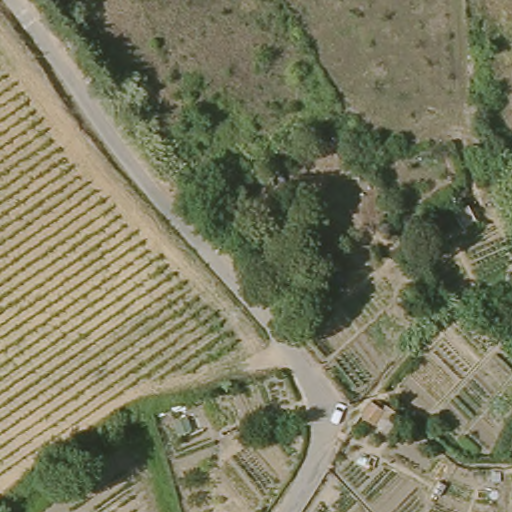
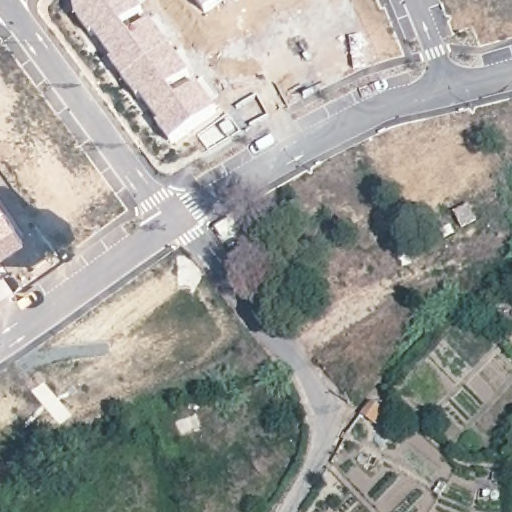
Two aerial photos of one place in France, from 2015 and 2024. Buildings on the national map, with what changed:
new [(137,3),(142,10),(123,26),(130,37),(149,21),(157,16),(172,35),(163,38),(173,51),(180,47),(197,68),(189,73),(174,85),(182,94),(195,82),(204,77),(218,96),(210,101),(217,110),(170,143),(157,126),(160,124),(140,97),(137,99),(112,62),(114,61),(77,19),(74,1),(79,0),(144,0),(137,3)]
new [(204,14),(192,0),(223,0),(204,14)]
new [(0,253),(0,205),(22,238),(0,253)]
unchanged [(473,226),(462,230),(454,215),(467,209),(473,226)]
unchanged [(380,405),(400,423),(395,430),(384,422),(377,431),(362,420),(370,409),(380,405)]

